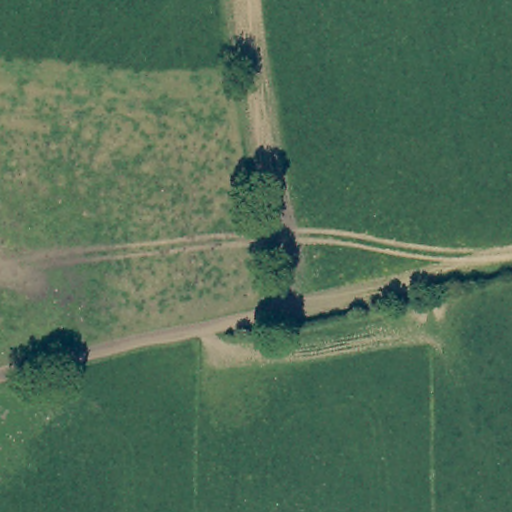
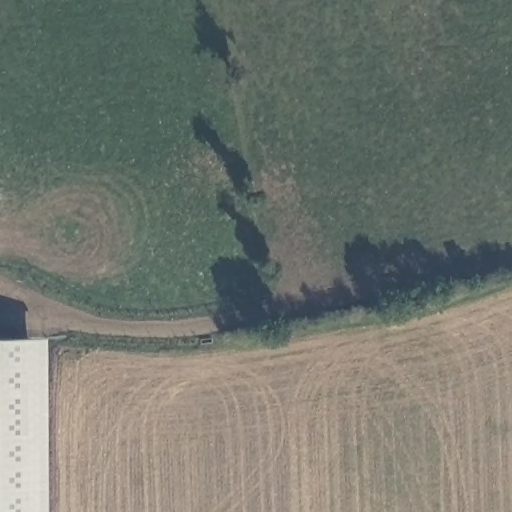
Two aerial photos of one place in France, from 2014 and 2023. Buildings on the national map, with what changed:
new [(41,336),(44,512),(0,512),(0,336),(41,336)]

